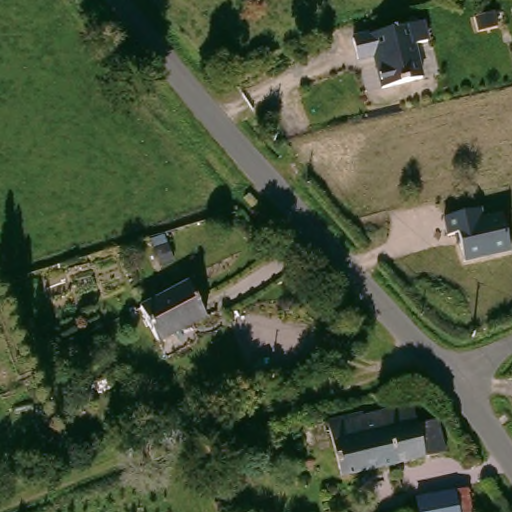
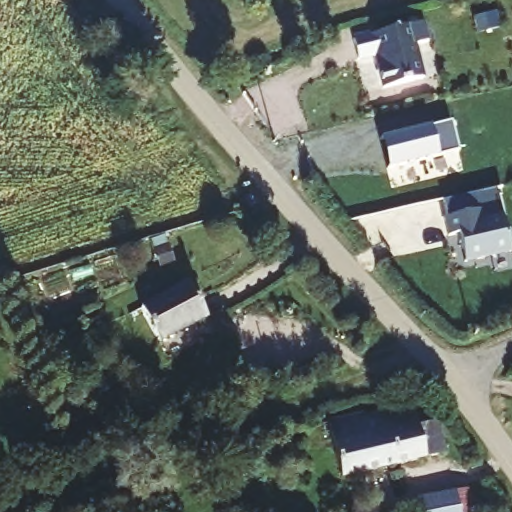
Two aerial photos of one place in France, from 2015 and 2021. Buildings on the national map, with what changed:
unchanged [(421,20),(426,39),(412,42),(420,76),(381,86),(373,52),(356,57),(351,37),(421,20)]
new [(475,117),(483,146),(397,168),(392,169),(384,139),(389,138),(475,117)]
unchanged [(456,235),(445,237),(442,217),(482,208),(484,221),(502,217),(510,254),(463,265),(456,235)]
unchanged [(190,287),(205,321),(159,343),(141,312),(190,287)]
unchanged [(407,416),(412,431),(434,426),(443,459),(378,477),(364,425),(407,416)]
unchanged [(338,485),(324,430),(356,422),(358,427),(364,425),(378,477),(338,485)]
unchanged [(409,506),(460,497),(461,501),(469,500),(471,512),(410,512),(409,506)]

